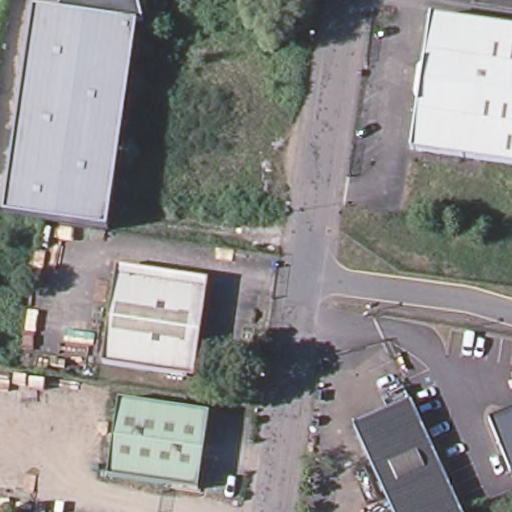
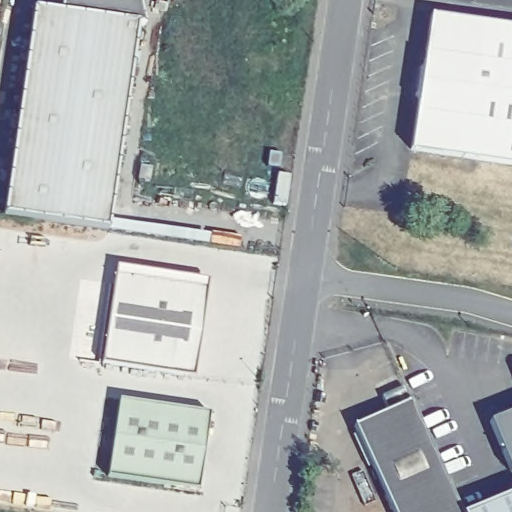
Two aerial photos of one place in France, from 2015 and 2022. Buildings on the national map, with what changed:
unchanged [(34,7),(61,12),(62,0),(136,0),(142,26),(137,26),(107,230),(4,216),(34,7)]
unchanged [(409,152),(415,103),(411,98),(415,72),(421,68),(427,18),(512,30),(512,167),(409,152)]
unchanged [(276,59),(267,62),(265,56),(274,52),(276,59)]
unchanged [(289,91),(277,96),(270,79),(282,75),(289,91)]
unchanged [(199,289),(186,379),(100,365),(115,276),(199,289)]
unchanged [(462,512),(394,512),(352,424),(410,397),(462,511),(462,512)]
unchanged [(102,476),(113,399),(204,412),(193,489),(102,476)]
unchanged [(490,424),(512,412),(512,473),(490,424)]
new [(469,512),(468,509),(512,491),(512,512),(469,512)]

